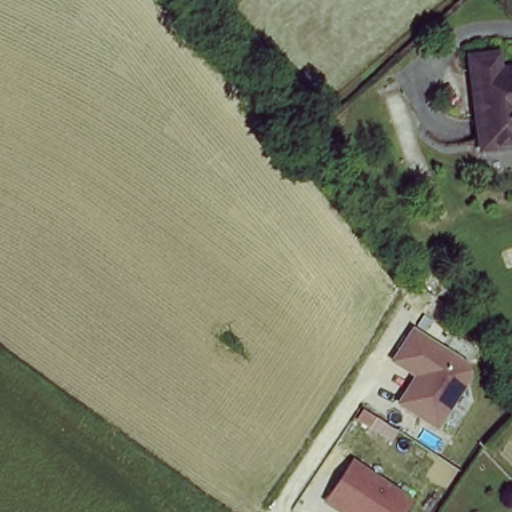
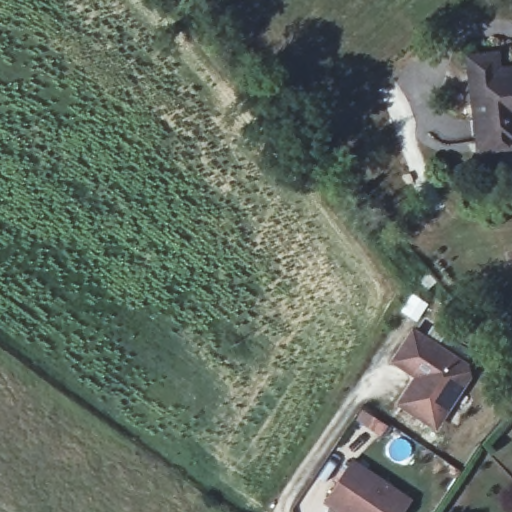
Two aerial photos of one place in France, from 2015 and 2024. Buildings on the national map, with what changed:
unchanged [(493,62),(493,75),(512,74),(512,147),(479,151),(471,64),(493,62)]
unchanged [(412,378),(389,363),(411,328),(468,362),(473,379),(436,431),(395,405),(412,378)]
unchanged [(333,512),(323,505),(351,461),(413,499),(404,512),(333,512)]

